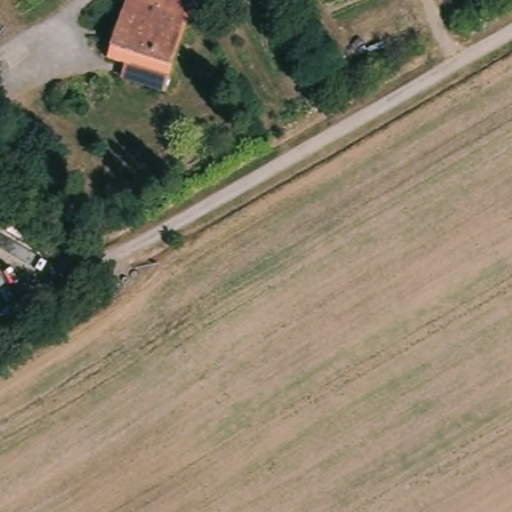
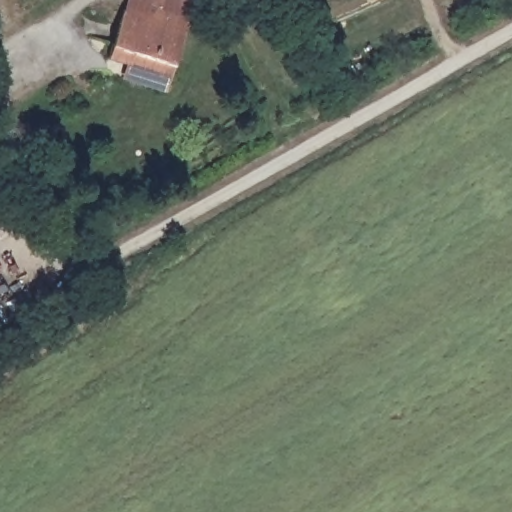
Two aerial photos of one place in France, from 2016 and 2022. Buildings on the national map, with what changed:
unchanged [(127,0),(166,0),(192,9),(188,25),(153,15),(148,24),(123,16),(127,0)]
unchanged [(148,24),(153,15),(188,25),(165,99),(128,87),(134,72),(106,63),(123,16),(148,24)]

